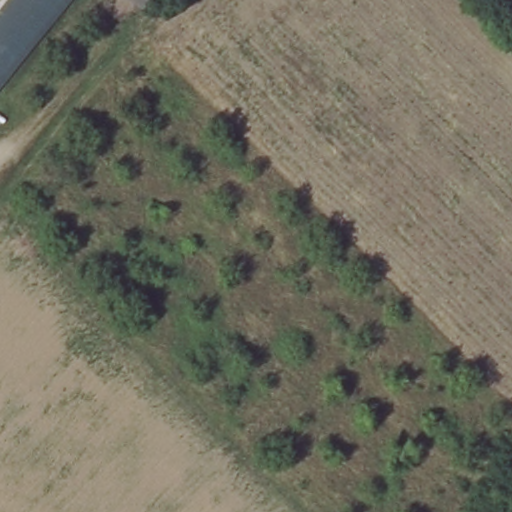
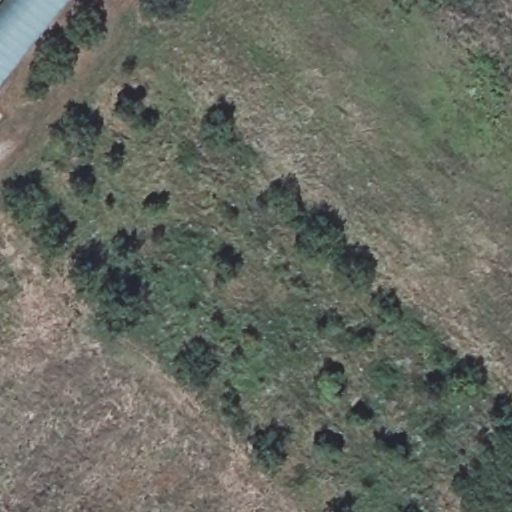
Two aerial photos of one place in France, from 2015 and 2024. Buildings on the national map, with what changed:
unchanged [(2,0),(68,0),(0,76),(0,2),(2,0)]
unchanged [(123,0),(141,0),(135,9),(123,0)]

